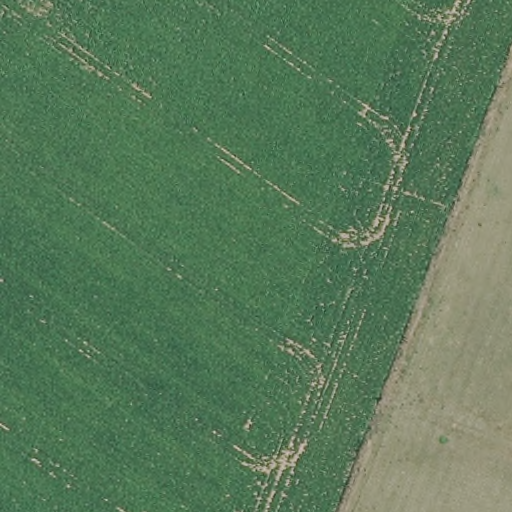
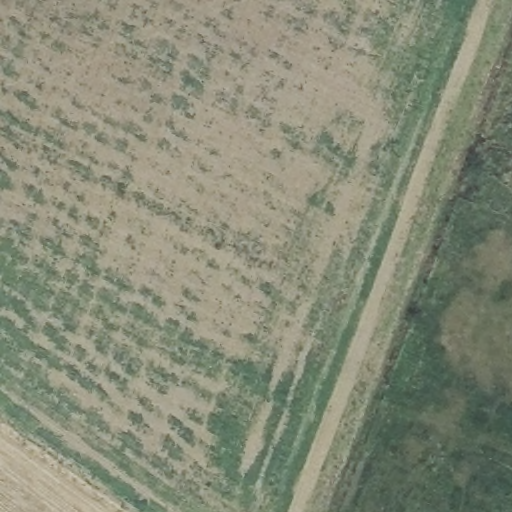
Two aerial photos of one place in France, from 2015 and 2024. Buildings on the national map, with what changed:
[]

